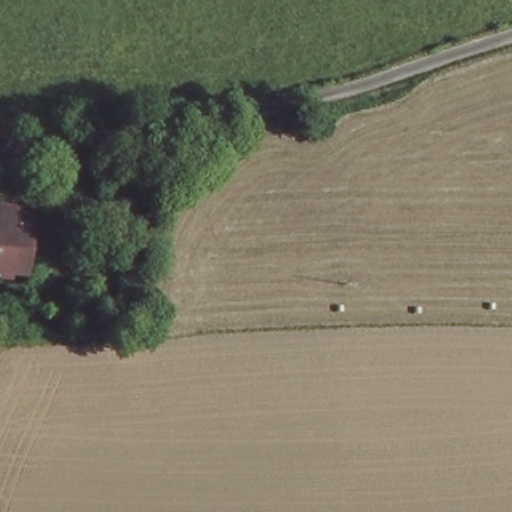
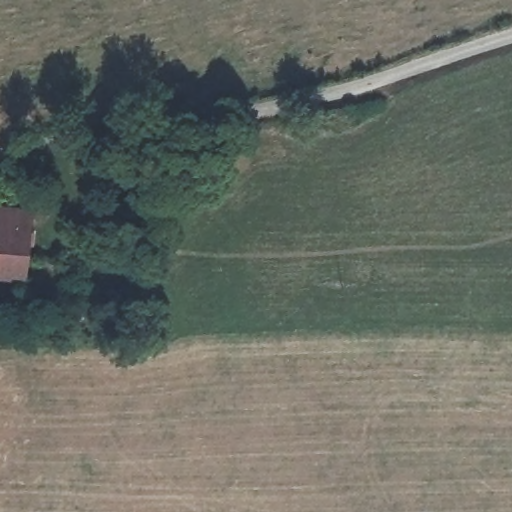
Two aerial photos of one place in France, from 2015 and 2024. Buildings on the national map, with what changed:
unchanged [(0,270),(0,201),(27,200),(27,269),(0,270)]

